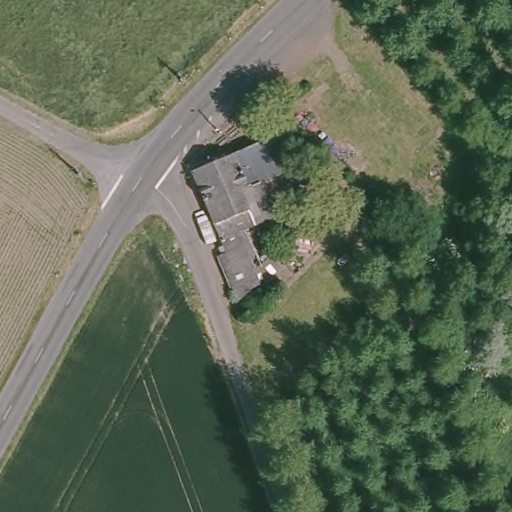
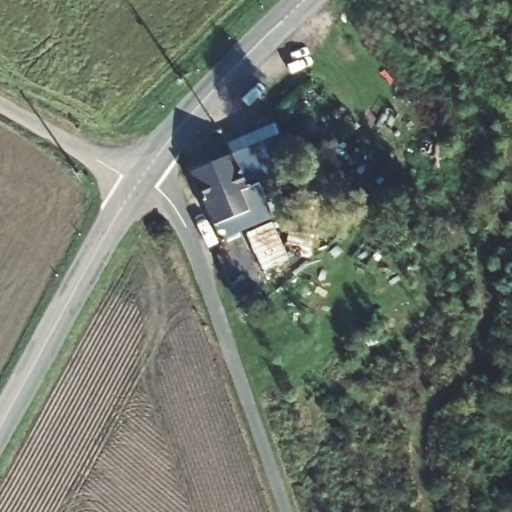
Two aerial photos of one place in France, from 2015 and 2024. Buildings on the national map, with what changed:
unchanged [(277,139),(298,188),(266,204),(275,225),(241,238),(266,294),(236,307),(218,262),(228,257),(193,177),(277,139)]

